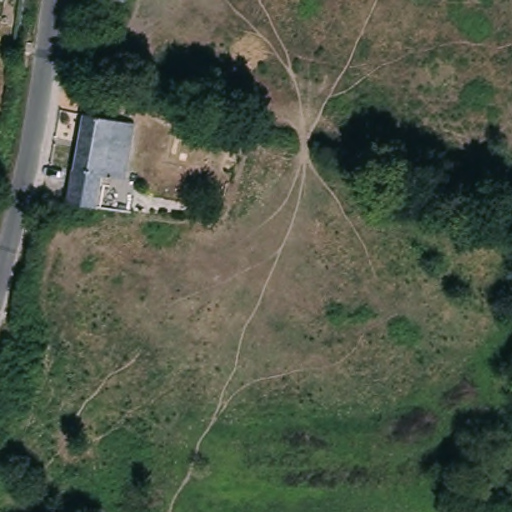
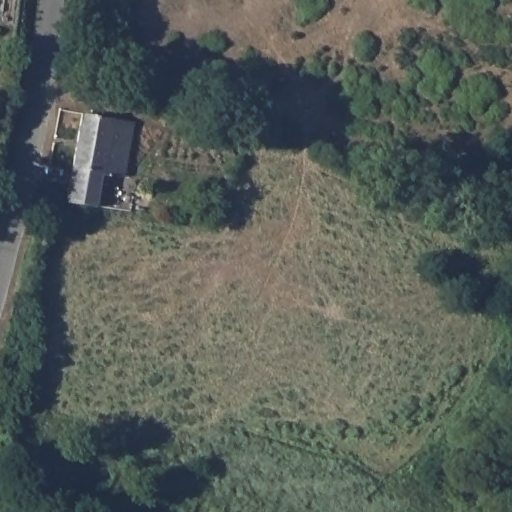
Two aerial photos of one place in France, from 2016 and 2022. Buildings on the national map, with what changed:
unchanged [(83,111),(133,121),(120,175),(100,170),(92,204),(62,199),(83,111)]

